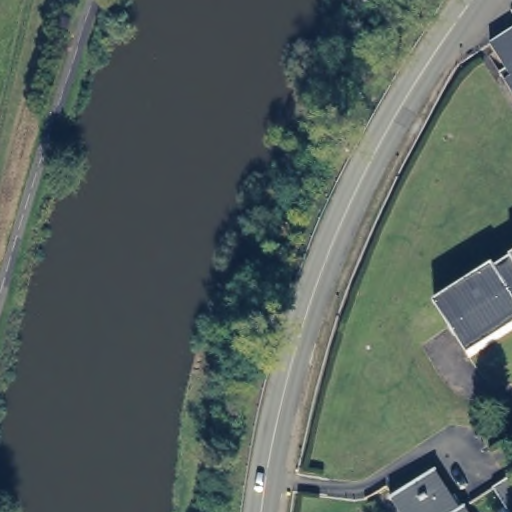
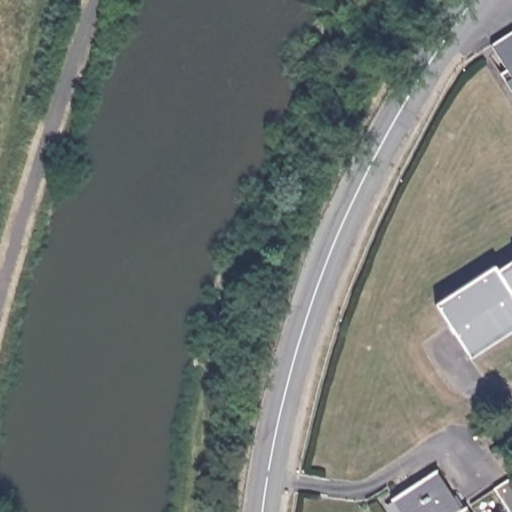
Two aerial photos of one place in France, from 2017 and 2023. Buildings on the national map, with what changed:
unchanged [(497,72),(504,67),(487,41),(512,25),(512,96),(497,72)]
unchanged [(492,267),(512,254),(512,326),(467,354),(433,298),(489,264),(492,267)]
unchanged [(399,512),(390,497),(443,464),(473,512),(399,512)]
unchanged [(510,512),(495,487),(512,477),(512,512),(510,512)]

